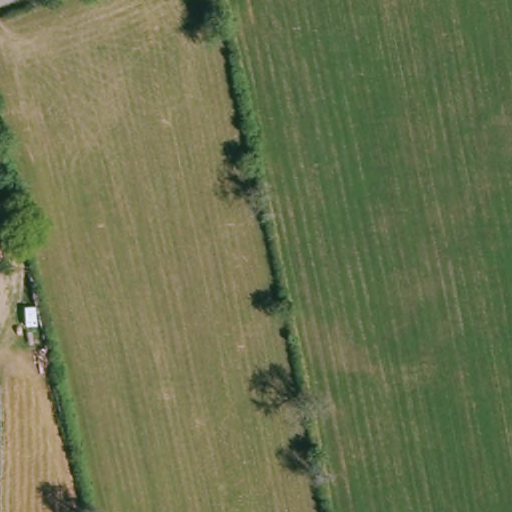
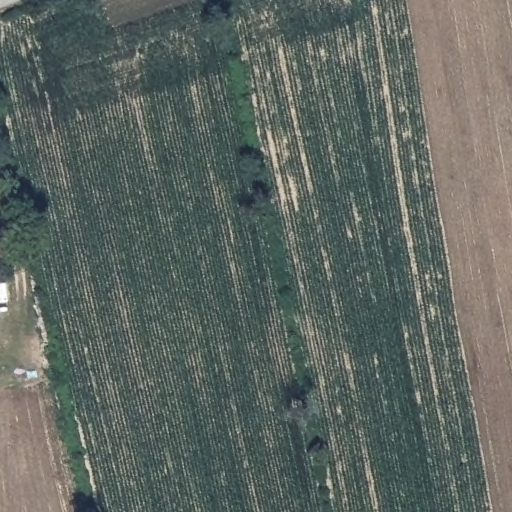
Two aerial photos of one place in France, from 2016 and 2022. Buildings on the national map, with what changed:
unchanged [(10,231),(10,258),(9,279),(0,279),(0,226),(2,226),(4,231),(10,231)]

